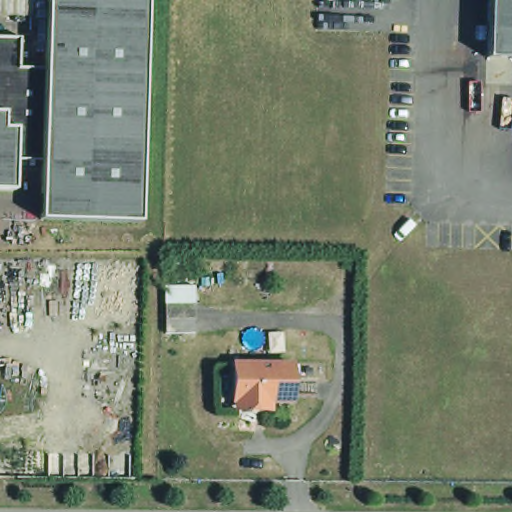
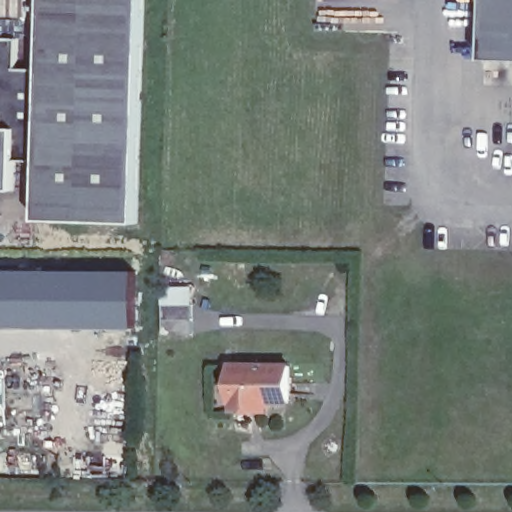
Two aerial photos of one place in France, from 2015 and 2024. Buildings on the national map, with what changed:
unchanged [(40,164),(19,163),(19,192),(0,192),(0,38),(23,38),(23,68),(47,69),(49,0),(147,0),(140,226),(39,222),(40,164)]
unchanged [(478,53),(480,0),(512,0),(512,55),(478,53)]
new [(141,326),(0,325),(0,263),(143,265),(141,326)]
unchanged [(192,309),(193,338),(163,339),(163,310),(192,309)]
unchanged [(236,406),(236,400),(237,395),(233,396),(233,358),(288,358),(289,395),(270,395),(270,406),(236,406)]

